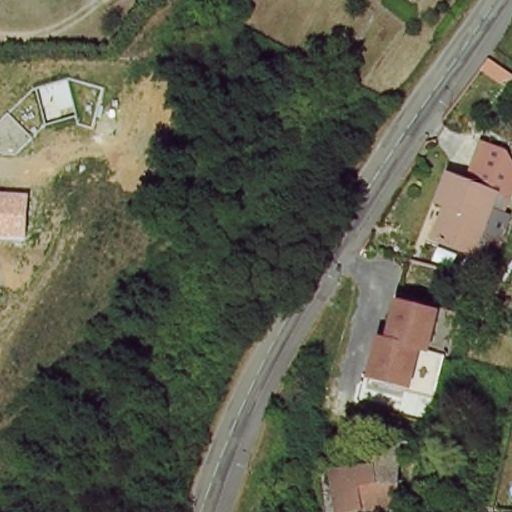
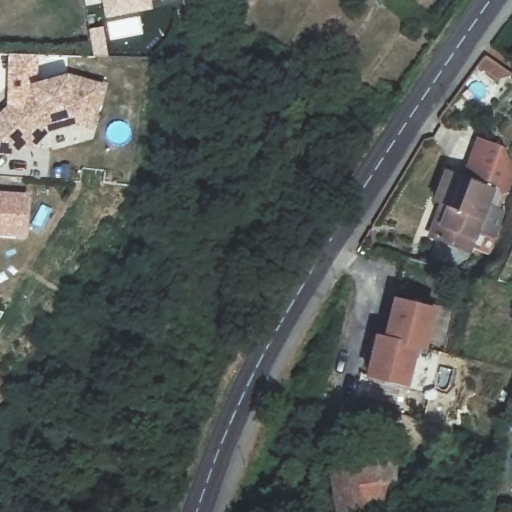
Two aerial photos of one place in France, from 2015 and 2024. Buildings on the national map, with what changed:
new [(151,11),(105,20),(102,0),(150,0),(151,11)]
new [(29,82),(65,71),(101,81),(90,122),(76,119),(74,109),(42,117),(13,146),(0,145),(0,109),(29,82)]
unchanged [(483,249),(481,257),(446,248),(436,246),(446,208),(440,207),(448,176),(469,181),(479,142),(501,148),(512,162),(512,186),(501,190),(499,190),(495,206),(512,210),(512,212),(505,239),(506,239),(501,257),(483,249)]
unchanged [(25,237),(0,235),(0,192),(27,194),(25,237)]
unchanged [(402,301),(440,311),(430,350),(421,347),(403,343),(392,340),(402,301)]
unchanged [(386,339),(392,340),(403,343),(421,347),(412,387),(374,377),(384,338),(386,339)]
unchanged [(333,512),(334,471),(378,472),(390,444),(405,445),(395,512),(333,512)]

